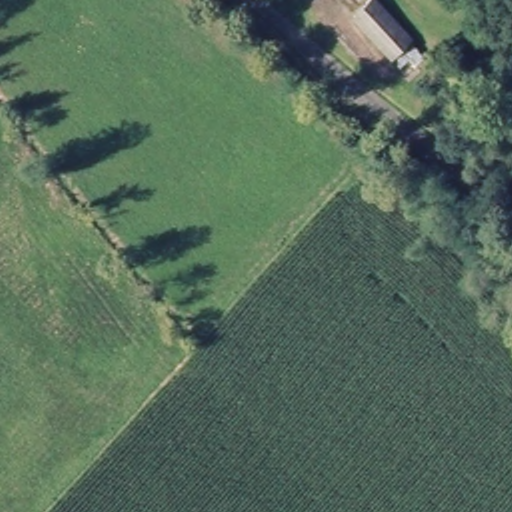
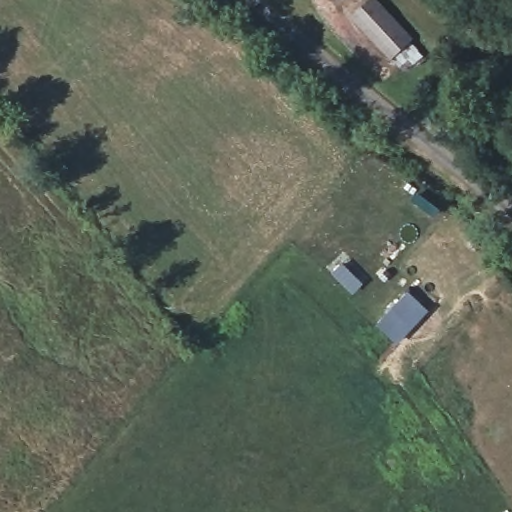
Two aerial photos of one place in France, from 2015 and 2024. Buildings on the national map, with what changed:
unchanged [(386,2),(408,41),(379,56),(358,17),(386,2)]
new [(376,323),(408,291),(428,311),(397,344),(376,323)]

